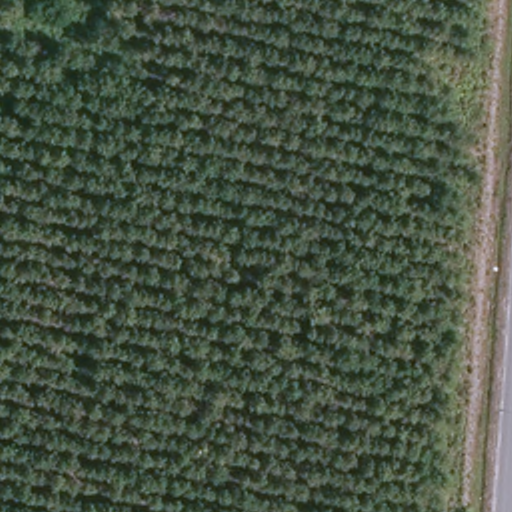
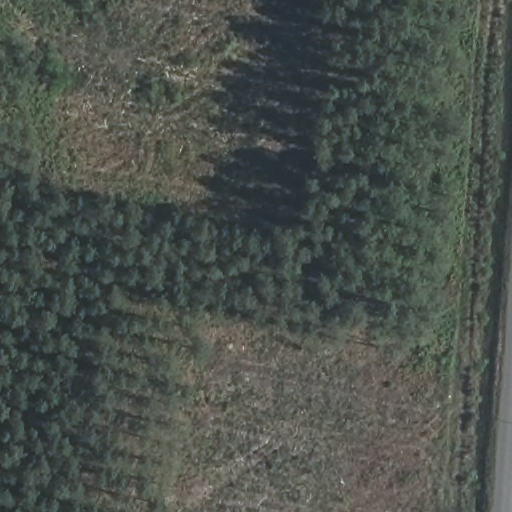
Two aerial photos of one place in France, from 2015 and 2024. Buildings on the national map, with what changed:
[]

